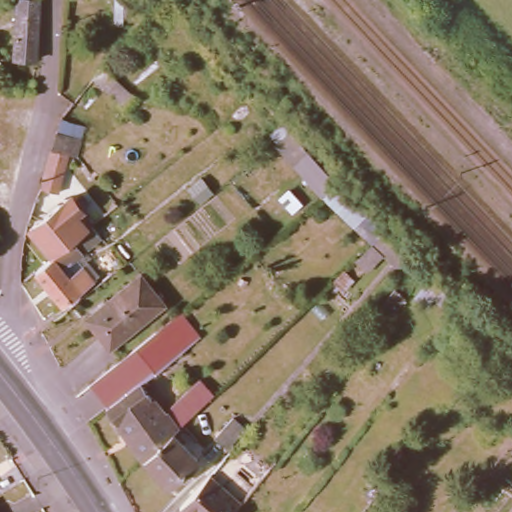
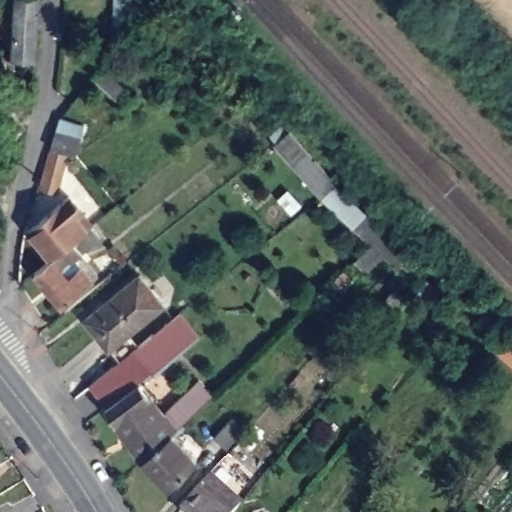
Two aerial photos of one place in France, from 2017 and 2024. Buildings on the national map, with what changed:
unchanged [(20,0),(39,0),(35,56),(16,52),(20,0)]
unchanged [(0,26),(3,30),(0,33),(0,26)]
unchanged [(53,142),(56,124),(81,130),(75,148),(68,146),(59,186),(44,182),(53,142)]
unchanged [(293,132),(414,250),(371,281),(354,262),(359,257),(336,232),(345,224),(274,149),(293,132)]
unchanged [(53,255),(31,227),(60,202),(61,203),(71,195),(93,222),(102,234),(82,251),(98,272),(93,277),(62,302),(36,269),(53,255)]
unchanged [(0,242),(0,233),(3,237),(0,242)]
unchanged [(115,340),(91,310),(144,268),(168,297),(115,340)]
unchanged [(108,408),(91,387),(135,352),(154,336),(165,348),(171,357),(152,372),(139,382),(108,408)]
unchanged [(108,408),(139,382),(151,397),(148,400),(151,404),(146,408),(156,421),(166,413),(178,402),(199,381),(213,397),(178,430),(173,435),(144,462),(106,411),(108,408)]
unchanged [(234,415),(244,425),(226,442),(216,432),(234,415)]
unchanged [(199,461),(171,489),(144,462),(173,435),(199,461)]
unchanged [(184,501),(214,467),(246,496),(241,503),(234,512),(196,512),(184,501)]

